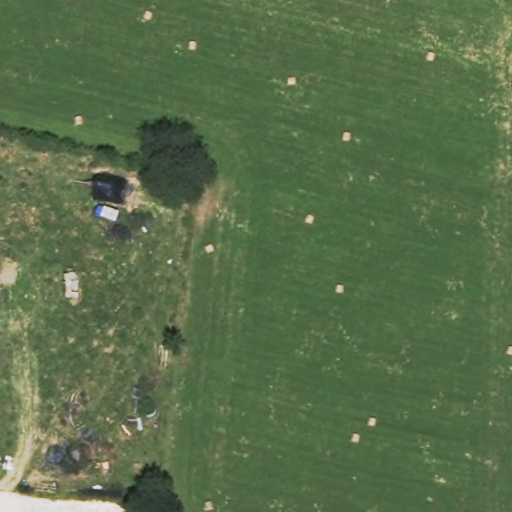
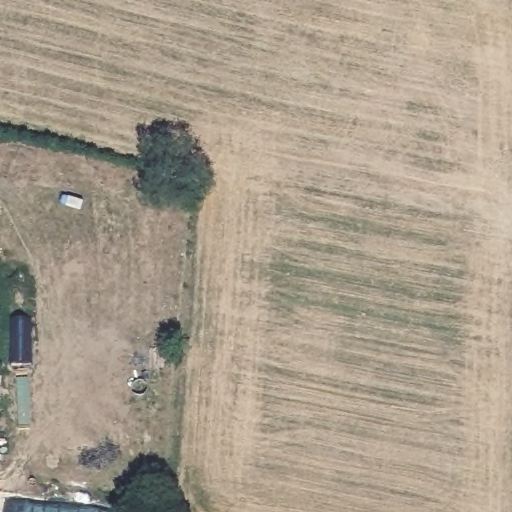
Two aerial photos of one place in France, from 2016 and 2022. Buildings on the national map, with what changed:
[]

